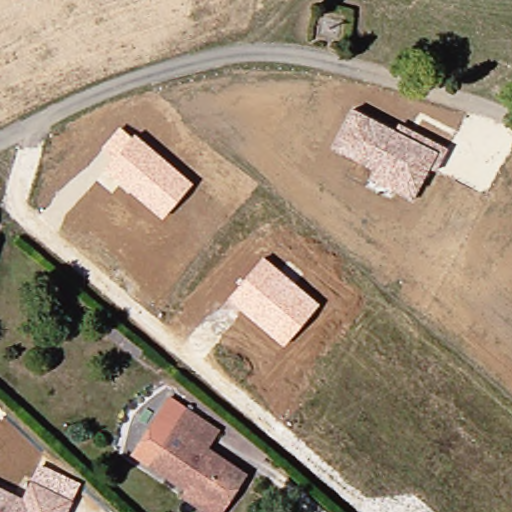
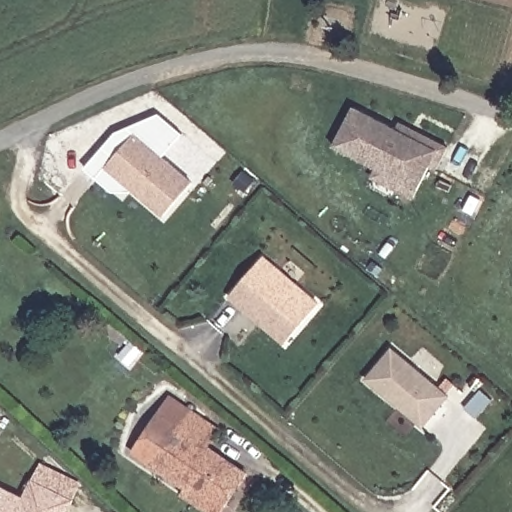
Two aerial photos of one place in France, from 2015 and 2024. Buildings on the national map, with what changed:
unchanged [(369,180),(375,170),(333,146),(355,104),(398,127),(401,121),(452,150),(441,170),(431,166),(415,201),(369,180)]
unchanged [(193,183),(162,219),(105,169),(114,157),(102,147),(119,126),(132,137),(135,134),(193,183)]
unchanged [(319,304),(284,346),(227,299),(263,257),(319,304)]
new [(450,396),(423,430),(367,380),(392,348),(450,396)]
unchanged [(219,431),(209,447),(250,475),(223,512),(206,512),(184,499),(188,493),(131,456),(170,399),(219,431)]
unchanged [(30,478),(38,465),(80,485),(70,498),(64,512),(0,512),(0,485),(22,496),(30,478)]

